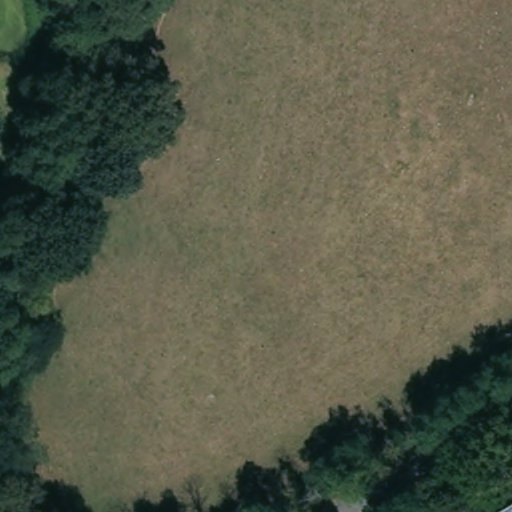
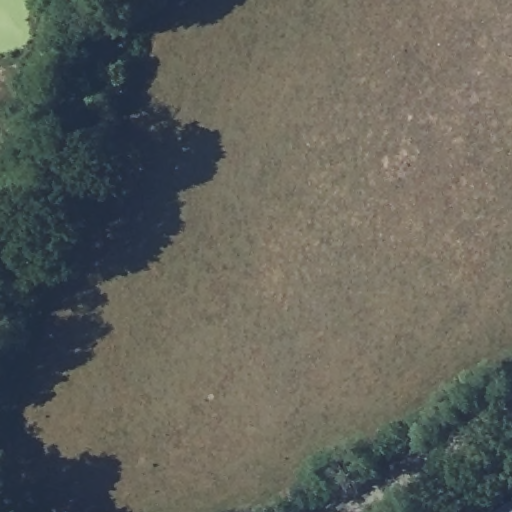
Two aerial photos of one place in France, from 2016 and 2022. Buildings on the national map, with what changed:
unchanged [(512,504),(512,512),(499,512),(512,504)]

